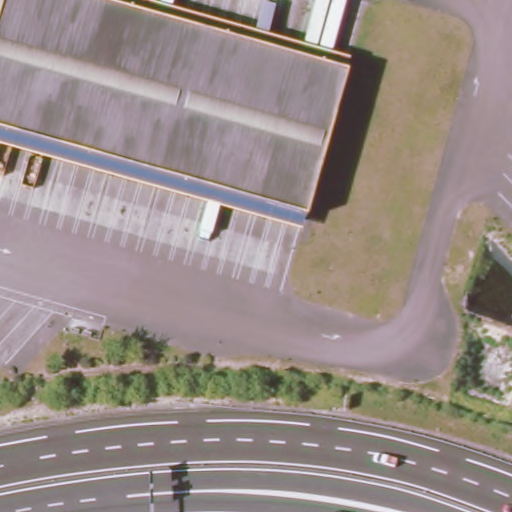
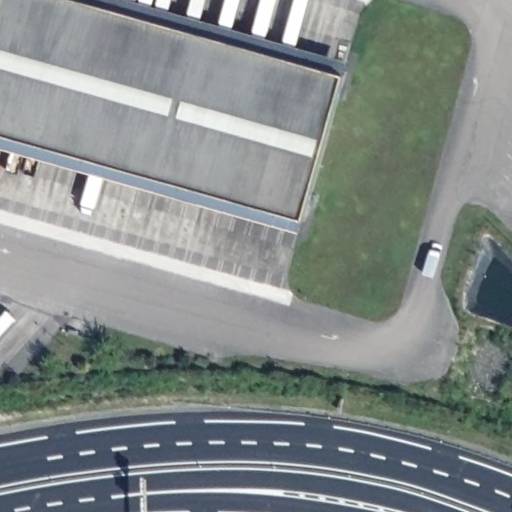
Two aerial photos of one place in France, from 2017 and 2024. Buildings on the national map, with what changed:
unchanged [(346,67),(304,217),(0,129),(0,0),(113,0),(346,67)]

